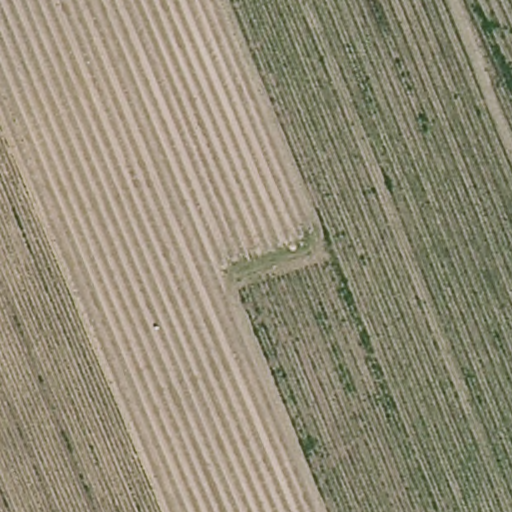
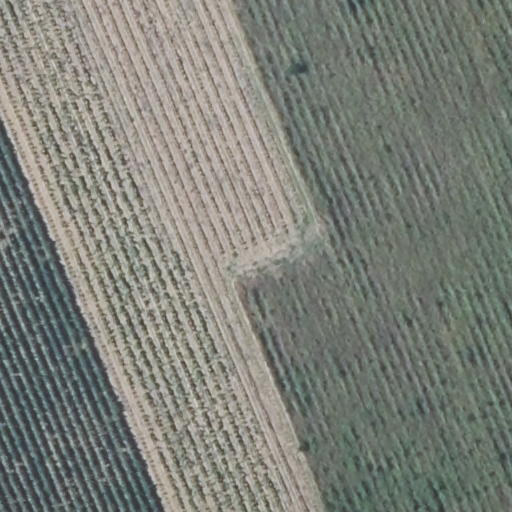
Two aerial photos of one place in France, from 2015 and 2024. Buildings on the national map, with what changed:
[]

